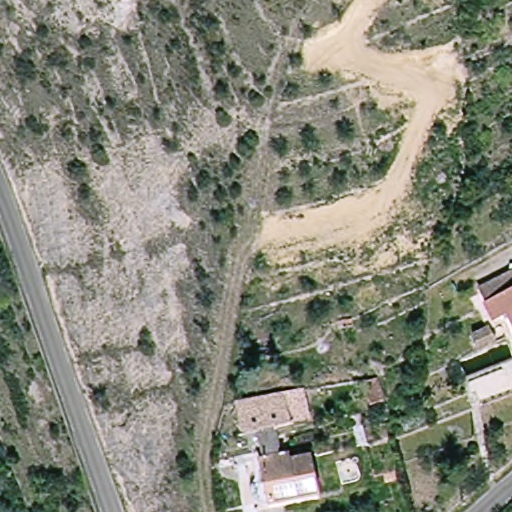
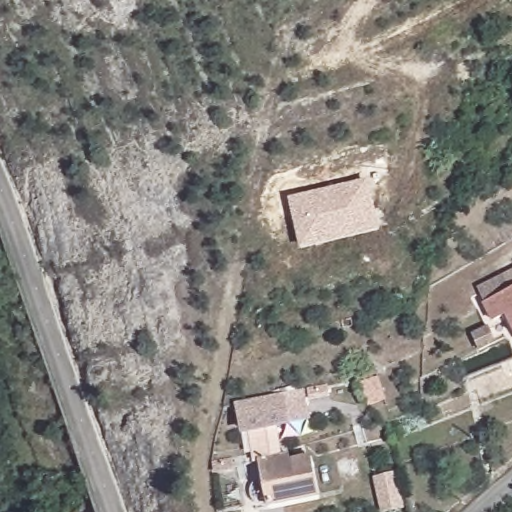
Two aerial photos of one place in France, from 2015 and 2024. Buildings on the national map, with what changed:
new [(301,250),(288,196),(367,179),(380,231),(301,250)]
unchanged [(493,320),(485,304),(512,290),(512,320),(508,312),(493,320)]
unchanged [(485,358),(472,336),(491,326),(502,349),(485,358)]
unchanged [(388,373),(397,403),(375,410),(365,380),(388,373)]
unchanged [(240,433),(233,403),(307,383),(317,415),(282,423),(291,449),(304,446),(308,461),(322,456),(332,496),(275,509),(255,430),(240,433)]

